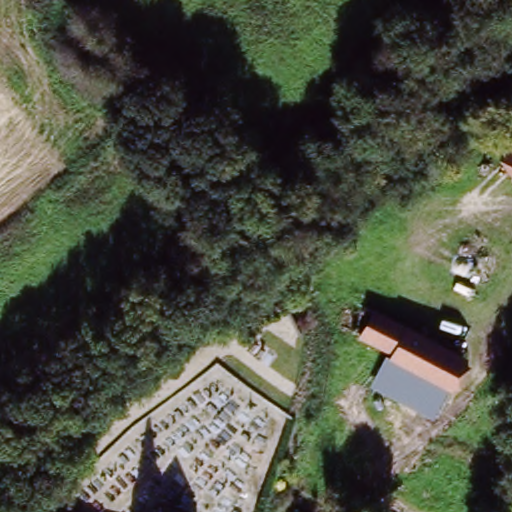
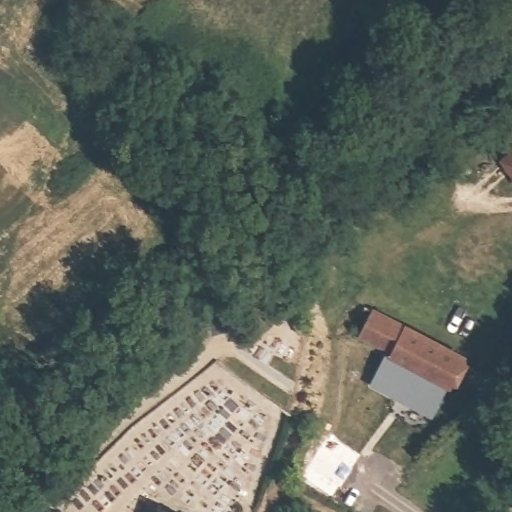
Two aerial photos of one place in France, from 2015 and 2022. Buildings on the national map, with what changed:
unchanged [(509,147),(512,145),(512,172),(499,154),(509,147)]
unchanged [(464,374),(456,389),(446,384),(444,387),(391,362),(395,353),(339,324),(351,302),(461,358),(470,362),(464,374)]
unchanged [(151,508),(154,509),(156,504),(161,506),(160,511),(162,512),(149,512),(151,508)]

